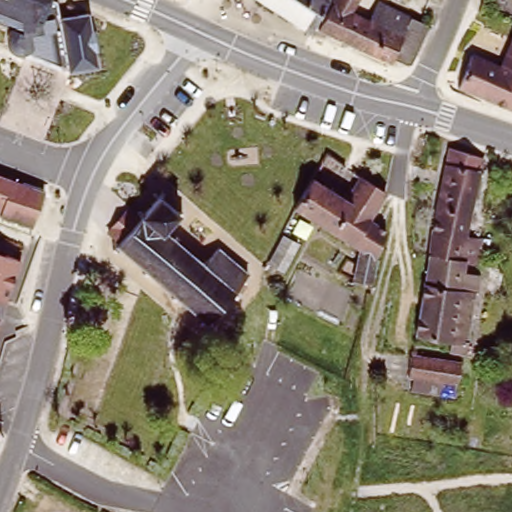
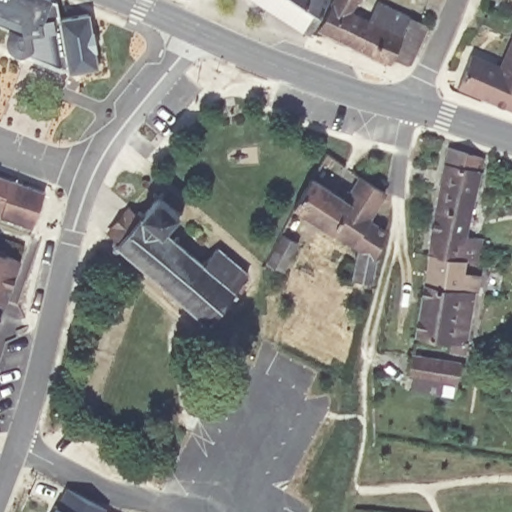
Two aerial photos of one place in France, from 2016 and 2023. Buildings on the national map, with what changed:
unchanged [(71,67),(67,68),(25,56),(15,52),(10,48),(7,44),(6,40),(6,36),(8,24),(0,21),(0,0),(56,0),(59,16),(64,18),(62,10),(91,6),(100,62),(71,67)]
unchanged [(271,0),(278,0),(276,3),(271,0)]
unchanged [(276,3),(278,0),(322,0),(307,23),(276,3)]
unchanged [(366,9),(372,0),(392,0),(425,19),(412,55),(398,60),(387,54),(385,57),(317,20),(328,0),(355,0),(354,2),(366,9)]
unchanged [(512,66),(512,104),(454,80),(465,46),(512,66)]
unchanged [(474,274),(463,338),(460,354),(456,353),(447,351),(449,341),(408,333),(426,250),(430,233),(448,147),(482,155),(466,232),(478,235),(477,239),(473,258),(461,255),(460,259),(458,269),(474,274)]
unchanged [(37,220),(4,209),(6,202),(0,201),(0,170),(47,186),(37,220)]
unchanged [(352,246),(292,207),(310,178),(340,198),(357,173),(361,176),(385,191),(368,219),(385,230),(372,259),(367,283),(350,278),(357,250),(352,246)]
unchanged [(114,232),(132,207),(144,216),(159,197),(155,193),(157,190),(159,193),(162,193),(163,191),(167,192),(165,196),(181,210),(186,209),(187,213),(183,214),(167,232),(175,238),(179,234),(182,236),(179,240),(205,262),(218,246),(249,270),(240,282),(244,283),(244,288),(238,288),(239,291),(237,294),(233,292),(215,315),(218,319),(216,322),(212,319),(207,324),(205,322),(209,317),(184,296),(180,300),(176,297),(180,293),(153,271),(150,274),(147,272),(150,267),(125,247),(120,251),(117,249),(124,241),(114,232)]
unchanged [(281,234),(296,242),(280,268),(265,259),(281,234)]
unchanged [(7,304),(0,301),(0,251),(22,258),(7,304)]
unchanged [(404,351),(455,362),(449,393),(437,391),(439,380),(400,373),(404,351)]
new [(106,512),(52,512),(55,505),(59,506),(66,488),(107,509),(106,512)]

